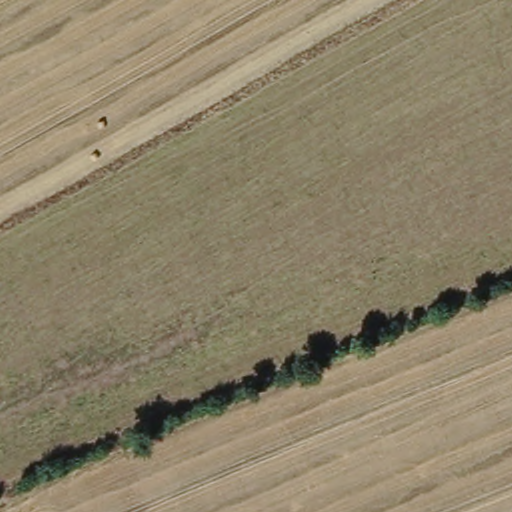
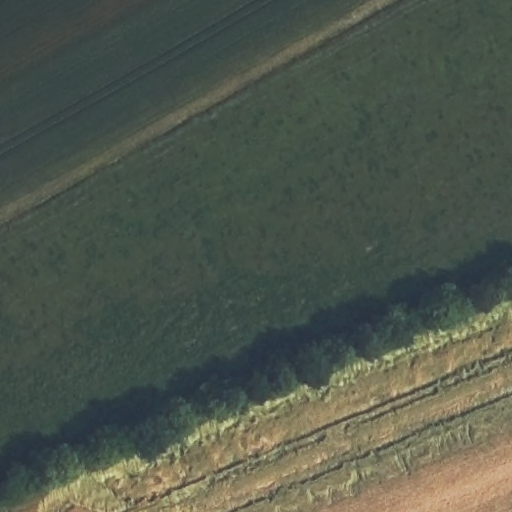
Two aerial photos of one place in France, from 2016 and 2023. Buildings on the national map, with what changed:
[]

